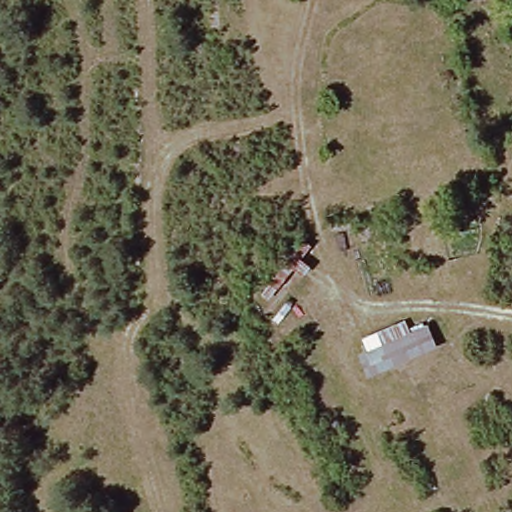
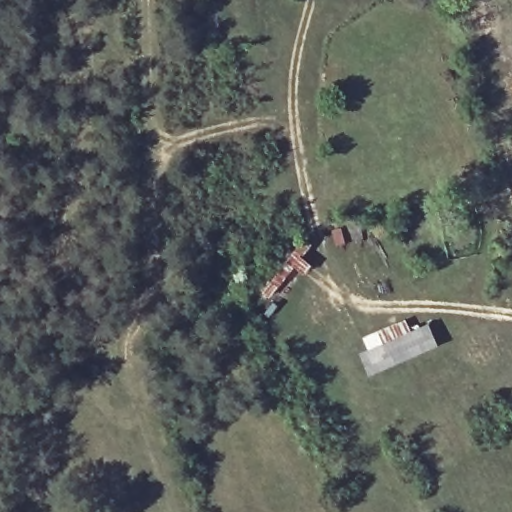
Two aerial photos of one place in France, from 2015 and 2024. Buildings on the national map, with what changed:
unchanged [(431,322),(437,346),(367,375),(361,353),(431,322)]

